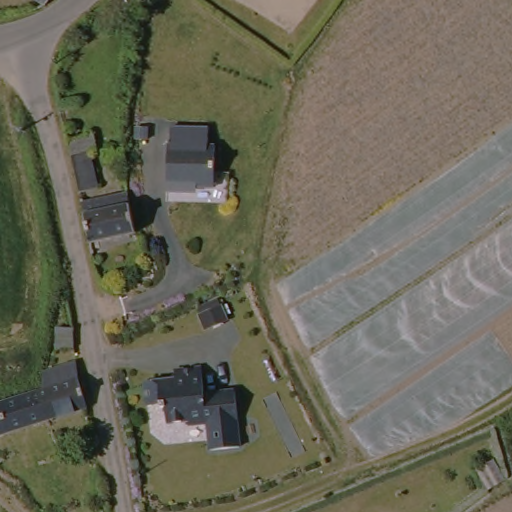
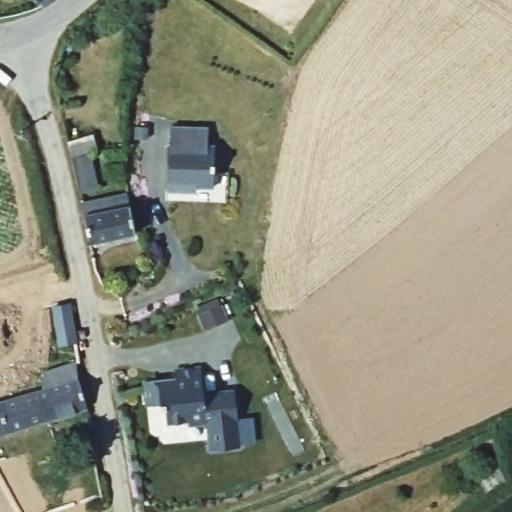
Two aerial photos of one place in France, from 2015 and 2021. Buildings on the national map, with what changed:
unchanged [(42,8),(34,0),(51,0),(42,8)]
unchanged [(164,130),(204,123),(208,140),(214,139),(222,181),(198,185),(199,190),(176,194),(164,130)]
unchanged [(82,134),(96,191),(79,196),(60,140),(82,134)]
unchanged [(129,194),(136,233),(93,243),(86,205),(129,194)]
unchanged [(46,391),(51,390),(52,379),(74,369),(84,409),(48,424),(39,395),(46,391)]
unchanged [(178,381),(177,374),(204,369),(209,394),(239,388),(244,446),(209,453),(195,422),(174,426),(171,408),(153,411),(148,387),(178,381)]

